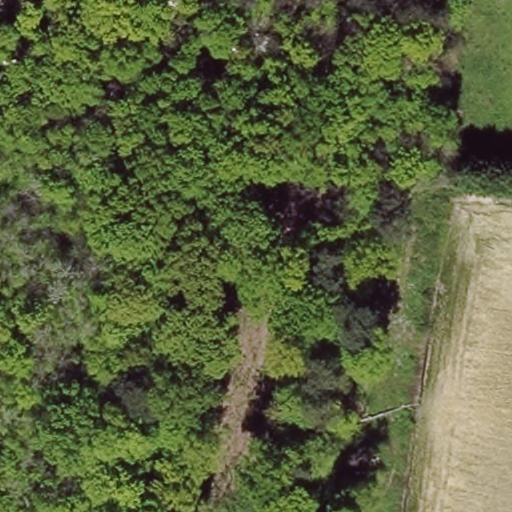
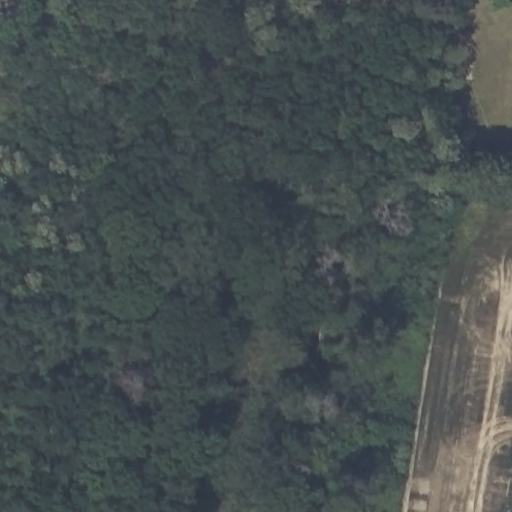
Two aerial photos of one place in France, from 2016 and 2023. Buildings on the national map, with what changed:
unchanged [(76,91),(101,95),(98,114),(73,110),(76,91)]

